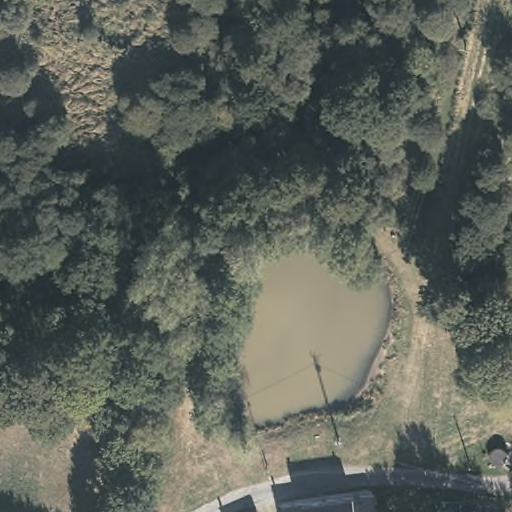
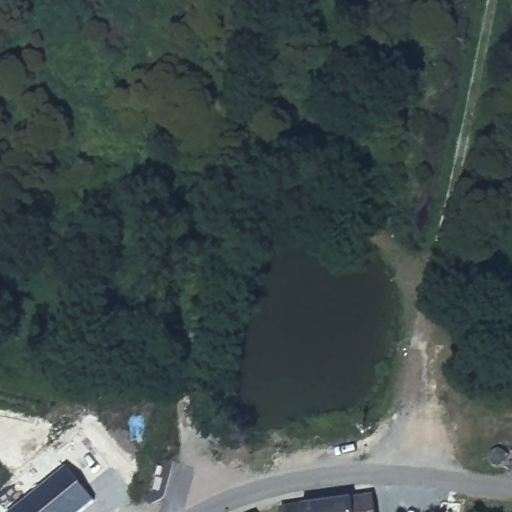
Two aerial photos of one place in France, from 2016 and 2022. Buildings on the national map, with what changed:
unchanged [(505,328),(512,327),(512,363),(510,363),(505,328)]
new [(94,500),(79,512),(8,512),(66,466),(94,500)]
unchanged [(376,512),(284,512),(284,509),(287,508),(376,497),(376,512)]

